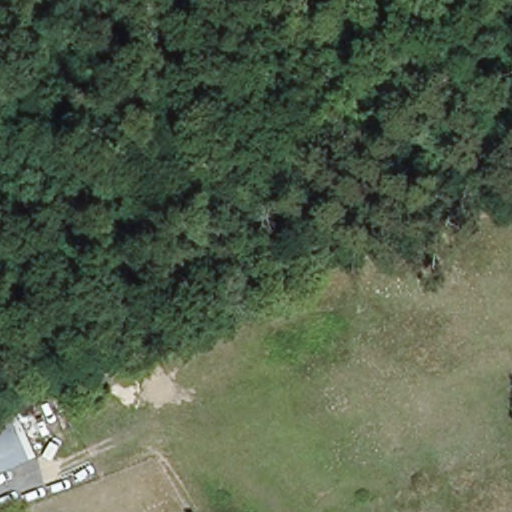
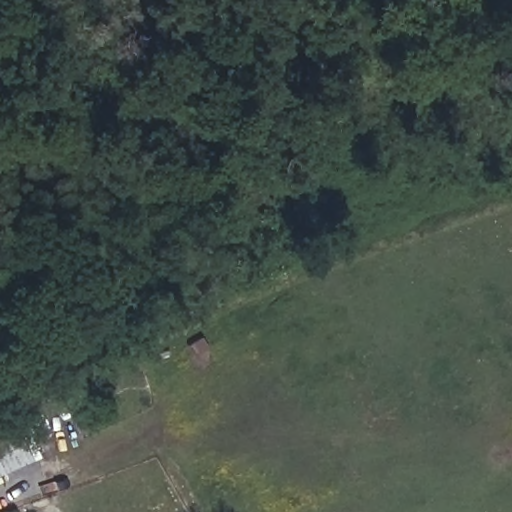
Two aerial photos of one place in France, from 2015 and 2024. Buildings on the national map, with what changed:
unchanged [(0,421),(20,412),(36,456),(0,472),(0,421)]

